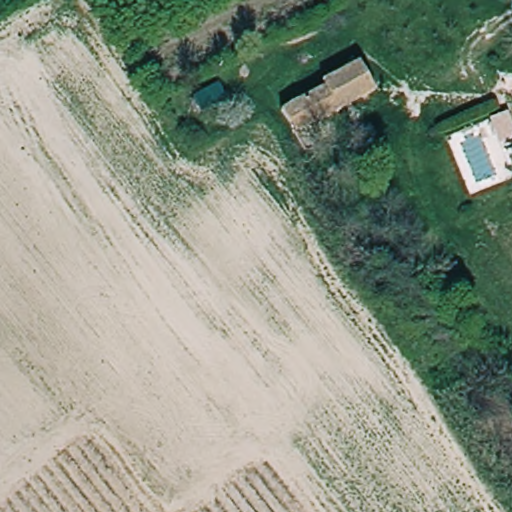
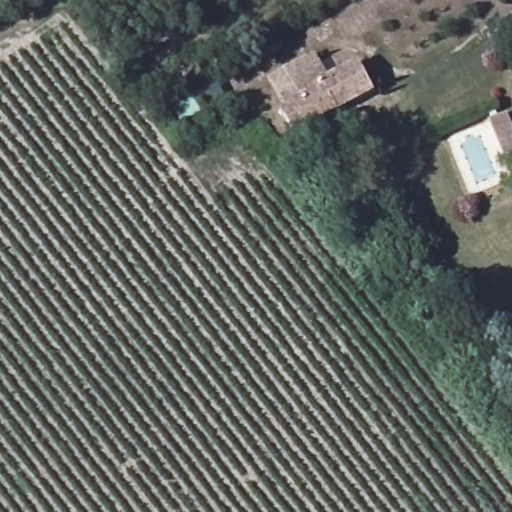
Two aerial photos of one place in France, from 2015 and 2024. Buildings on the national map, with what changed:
new [(317,52),(332,79),(321,85),(324,91),(285,109),(269,80),(317,52)]
unchanged [(318,152),(305,159),(281,110),(324,91),(321,85),(360,65),(375,93),(306,129),(318,152)]
new [(512,131),(512,146),(503,151),(488,121),(505,114),(512,131)]

